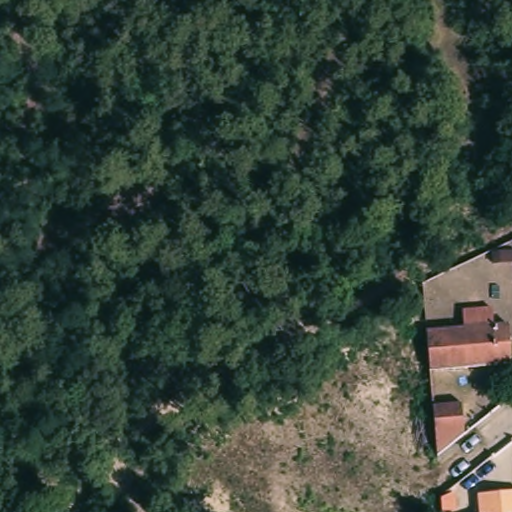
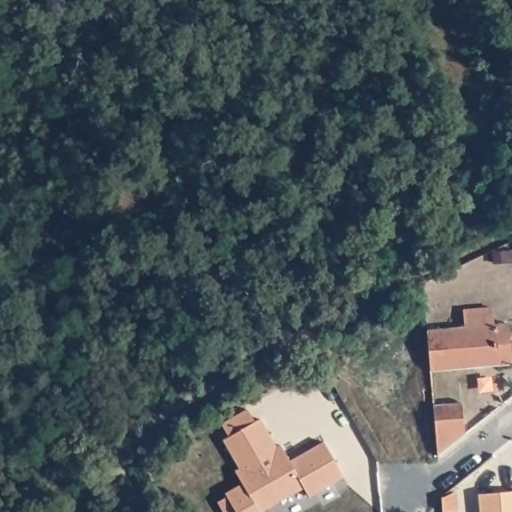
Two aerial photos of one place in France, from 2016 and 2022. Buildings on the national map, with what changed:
unchanged [(463,327),(462,310),(491,308),(493,324),(506,323),(511,363),(429,371),(426,330),(463,327)]
unchanged [(462,403),(465,432),(437,455),(433,405),(462,403)]
new [(241,484),(234,471),(238,469),(222,440),(227,437),(220,425),(245,410),(253,422),(258,419),(275,447),(279,445),(289,461),(322,441),(343,476),(308,496),(303,487),(261,512),(222,512),(217,502),(226,497),(224,494),(241,484)]
unchanged [(512,492),(512,512),(479,512),(478,494),(512,492)]

